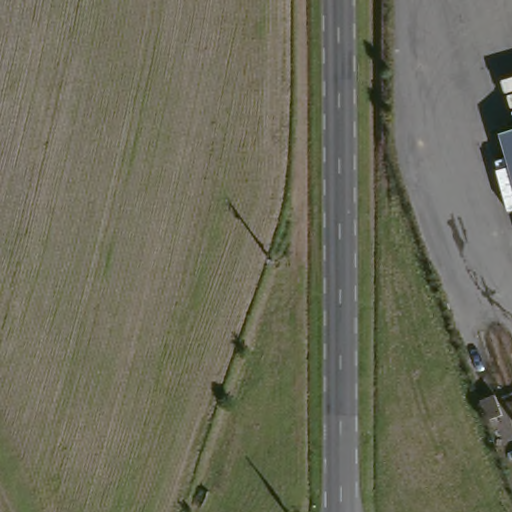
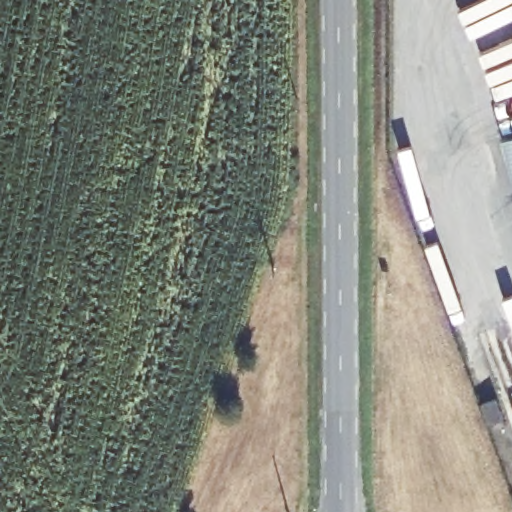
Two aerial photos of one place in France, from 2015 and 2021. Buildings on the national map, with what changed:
unchanged [(498,138),(512,135),(512,185),(498,138)]

